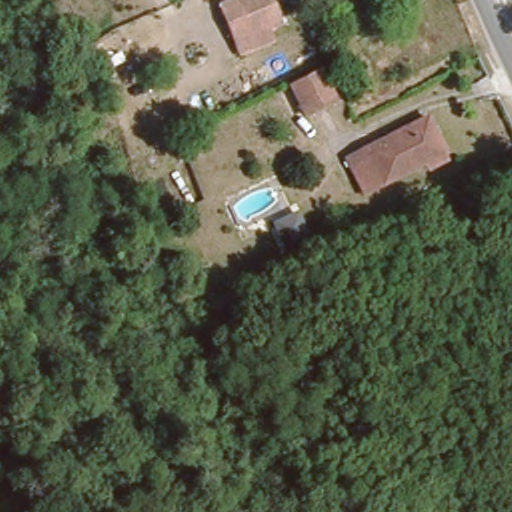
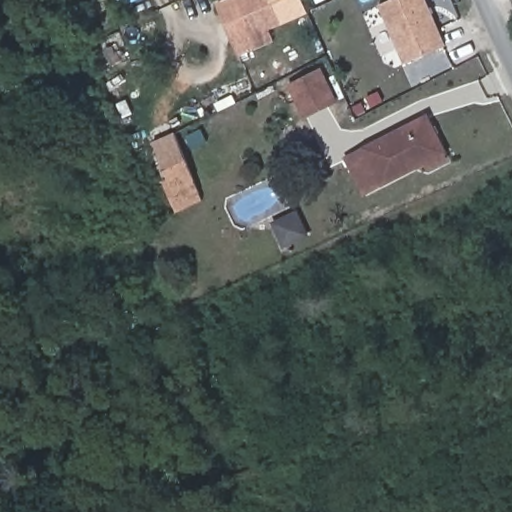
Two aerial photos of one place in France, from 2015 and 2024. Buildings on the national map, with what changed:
unchanged [(281,29),(252,42),(235,1),(237,0),(271,0),(281,29)]
new [(405,64),(379,5),(392,0),(427,0),(447,45),(405,64)]
unchanged [(340,102),(303,119),(285,83),(323,63),(340,102)]
unchanged [(454,158),(427,174),(425,164),(363,196),(342,156),(429,111),(454,158)]
new [(172,132),(203,200),(176,213),(169,197),(175,195),(151,142),(172,132)]
unchanged [(312,235),(280,248),(268,220),(297,205),(312,235)]

